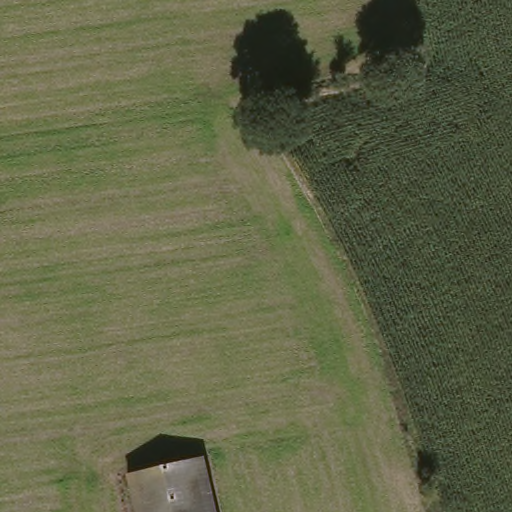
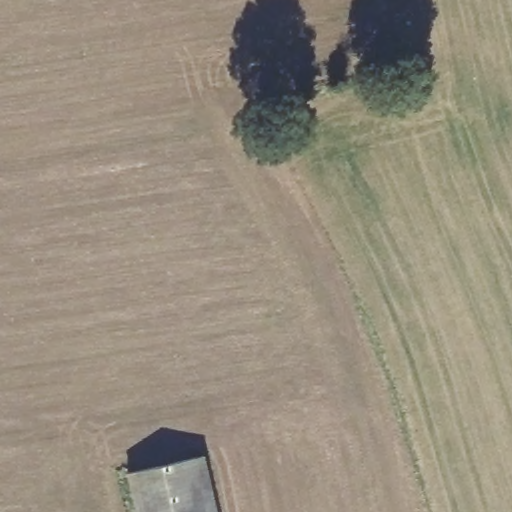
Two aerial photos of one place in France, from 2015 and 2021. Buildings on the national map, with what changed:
unchanged [(133,512),(126,475),(198,457),(210,512),(133,512)]

